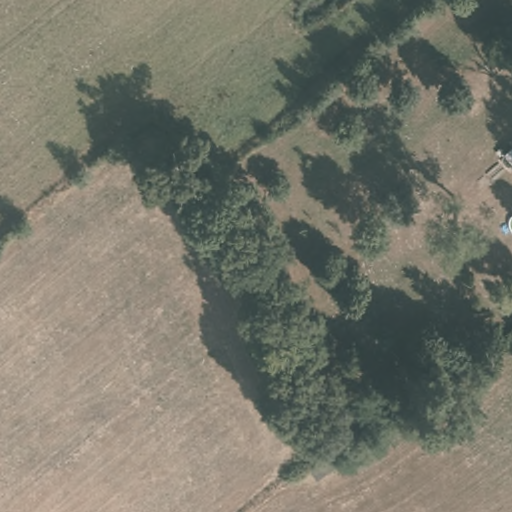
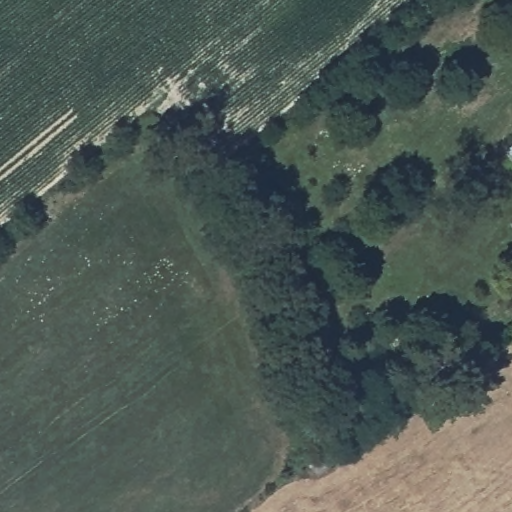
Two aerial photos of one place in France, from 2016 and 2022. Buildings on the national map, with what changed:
unchanged [(494,159),(512,140),(512,181),(494,159)]
unchanged [(343,457),(319,476),(307,463),(332,443),(343,457)]

